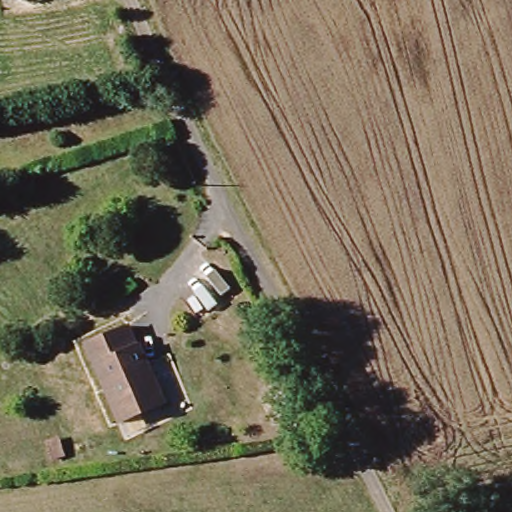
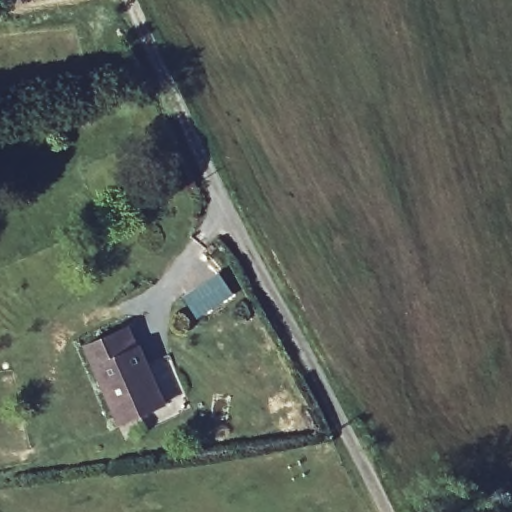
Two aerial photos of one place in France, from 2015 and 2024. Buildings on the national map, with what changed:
unchanged [(154,416),(118,429),(84,345),(126,327),(134,350),(142,346),(148,368),(166,413),(154,416)]

